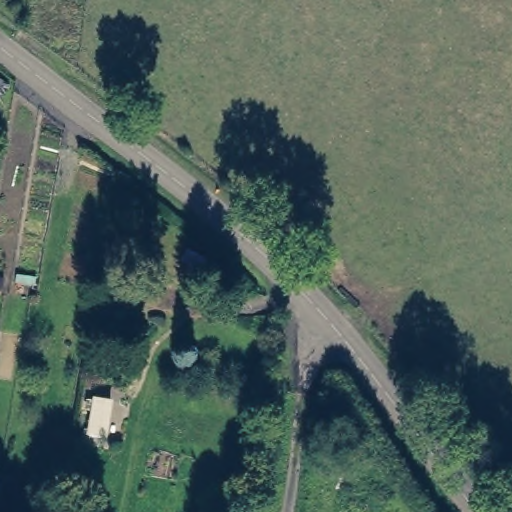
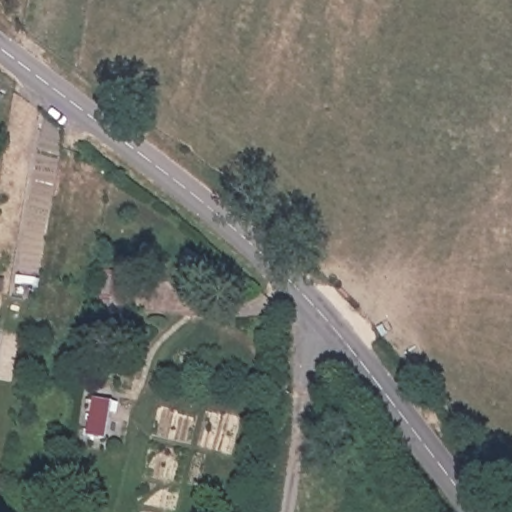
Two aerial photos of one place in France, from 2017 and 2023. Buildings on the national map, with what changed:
unchanged [(109,443),(86,438),(90,395),(112,401),(109,443)]

